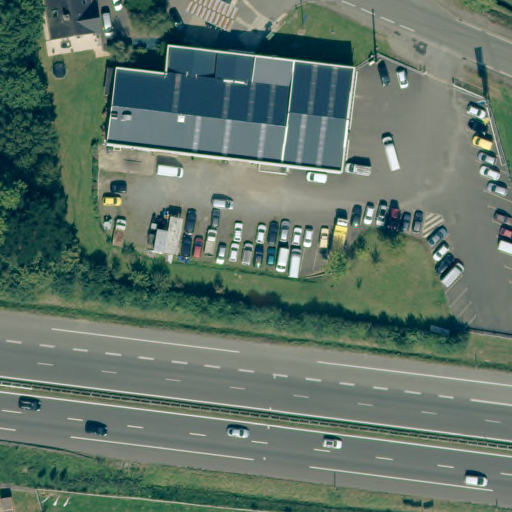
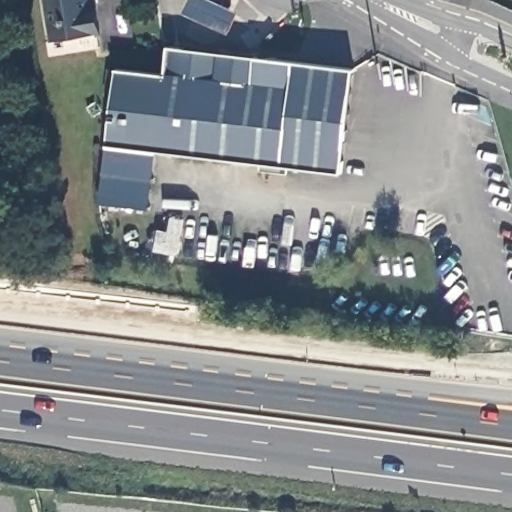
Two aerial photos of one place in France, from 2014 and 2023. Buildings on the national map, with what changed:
unchanged [(101,33),(51,41),(45,0),(91,0),(92,7),(97,6),(101,33)]
unchanged [(188,0),(216,0),(238,10),(228,32),(182,12),(188,0)]
unchanged [(348,70),(336,174),(100,144),(110,69),(159,74),(162,47),(348,70)]
new [(156,151),(149,211),(95,204),(100,144),(156,151)]

